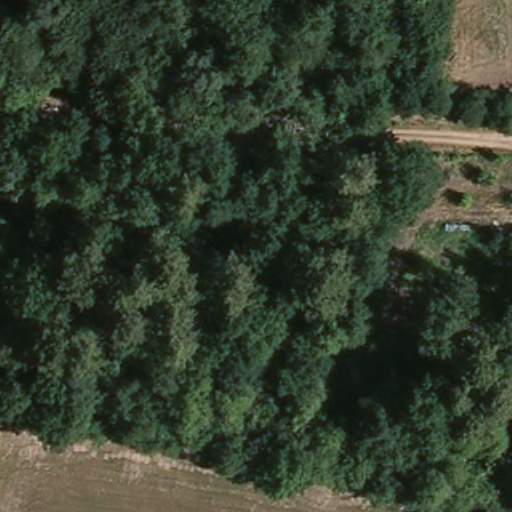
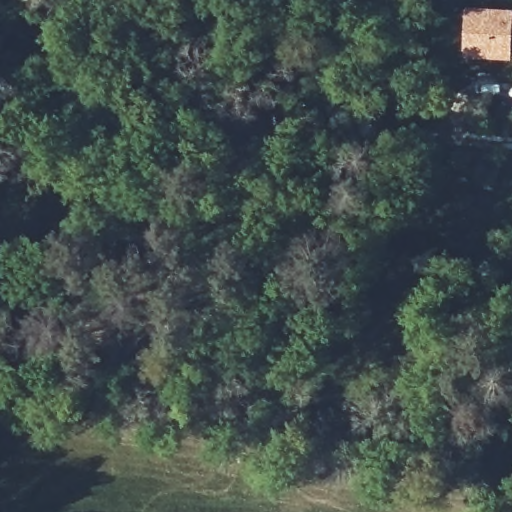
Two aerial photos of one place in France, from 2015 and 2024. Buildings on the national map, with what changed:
new [(512,59),(463,58),(465,9),(512,10),(512,53),(512,59)]

